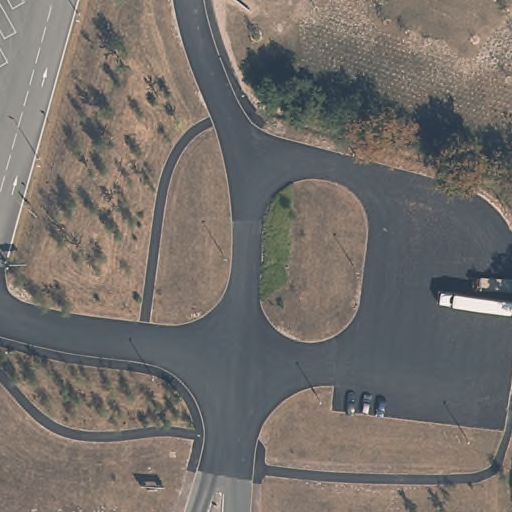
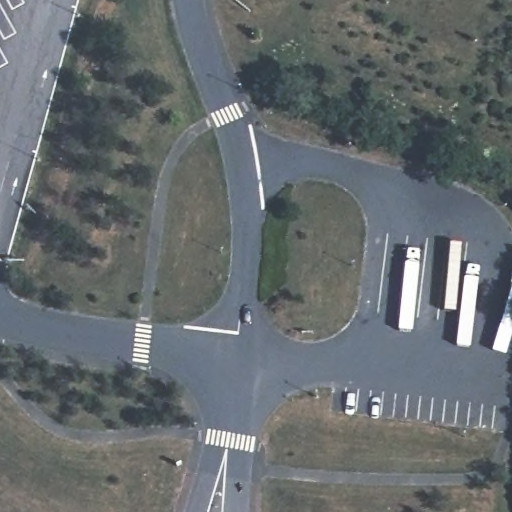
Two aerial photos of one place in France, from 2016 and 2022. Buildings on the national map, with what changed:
[]

